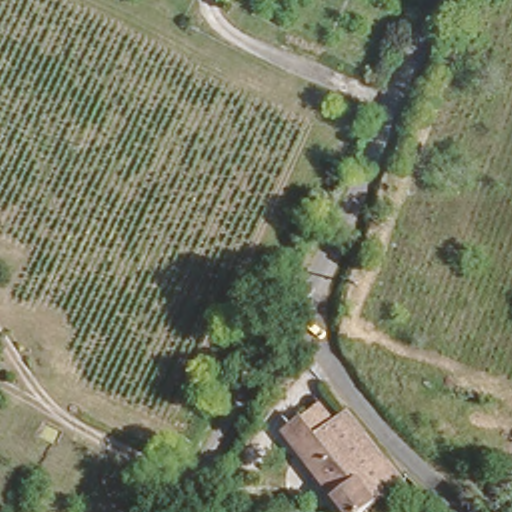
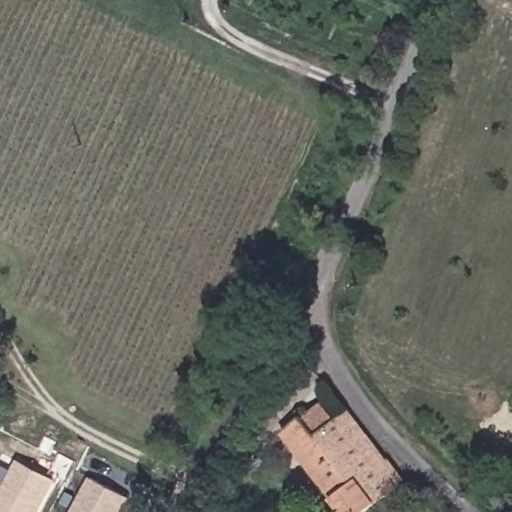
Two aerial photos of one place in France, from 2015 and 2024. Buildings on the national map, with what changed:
unchanged [(324,425),(336,413),(394,471),(353,512),(352,512),(297,456),(277,439),(290,427),(308,409),(324,425)]
new [(53,482),(38,512),(0,512),(0,501),(19,465),(53,482)]
unchanged [(236,488),(227,506),(232,511),(231,512),(209,512),(217,495),(212,492),(221,476),(236,488)]
new [(87,478),(126,497),(118,512),(70,512),(87,478)]
unchanged [(201,510),(205,512),(200,512),(201,510)]

